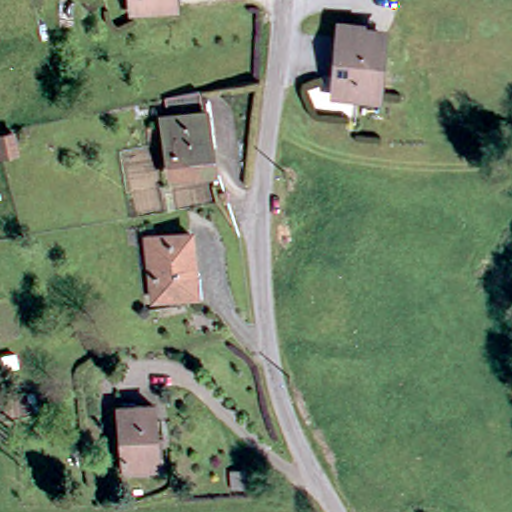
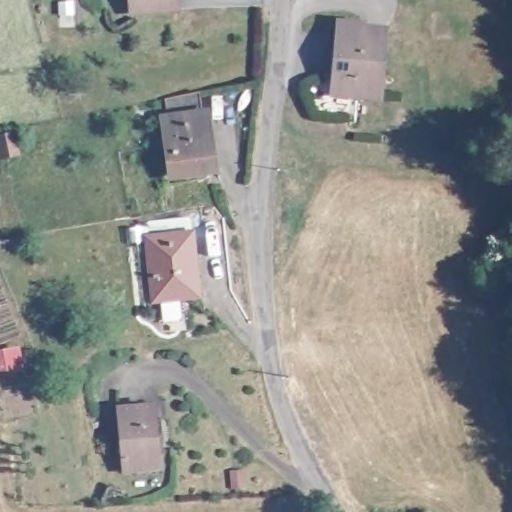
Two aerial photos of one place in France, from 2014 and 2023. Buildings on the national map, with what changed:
unchanged [(131,8),(131,0),(175,0),(175,4),(131,8)]
unchanged [(373,88),(351,88),(331,86),(336,17),(358,18),(357,27),(378,28),(373,88)]
unchanged [(208,159),(205,161),(207,176),(210,181),(169,185),(163,129),(166,129),(164,110),(199,103),(202,124),(203,124),(208,159)]
unchanged [(14,137),(17,158),(3,160),(0,143),(0,140),(14,137)]
unchanged [(155,139),(158,156),(156,156),(148,158),(145,141),(153,140),(155,139)]
unchanged [(132,221),(133,238),(124,239),(123,222),(132,221)]
unchanged [(151,294),(145,233),(187,228),(193,290),(151,294)]
unchanged [(1,371),(0,365),(0,360),(18,357),(19,368),(1,371)]
unchanged [(146,443),(149,443),(151,464),(114,467),(108,407),(141,403),(146,443)]
unchanged [(246,487),(231,489),(228,471),(243,469),(246,487)]

